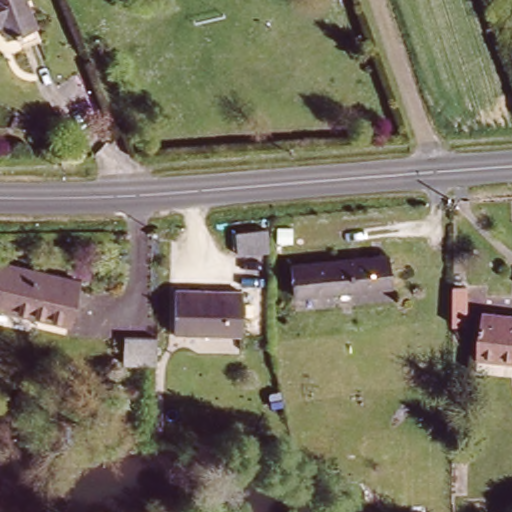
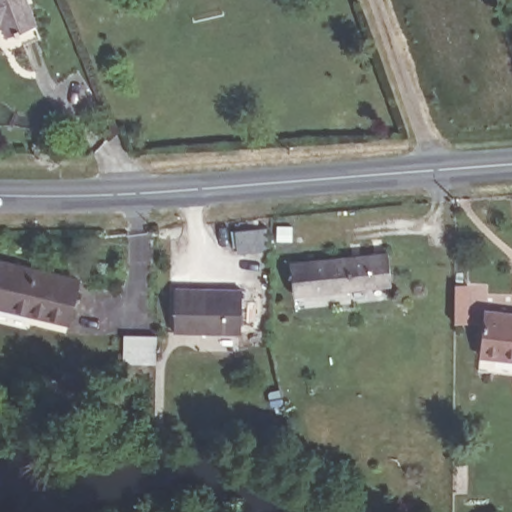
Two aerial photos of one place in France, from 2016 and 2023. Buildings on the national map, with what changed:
unchanged [(32,30),(2,37),(0,30),(0,0),(22,0),(32,30)]
unchanged [(237,225),(267,224),(270,247),(240,251),(237,225)]
unchanged [(382,254),(385,283),(285,290),(283,260),(382,254)]
unchanged [(66,331),(0,310),(0,263),(80,290),(66,331)]
unchanged [(242,284),(243,327),(176,327),(175,285),(242,284)]
unchanged [(512,315),(512,358),(473,354),(477,311),(512,315)]
unchanged [(157,335),(158,361),(125,361),(123,336),(157,335)]

